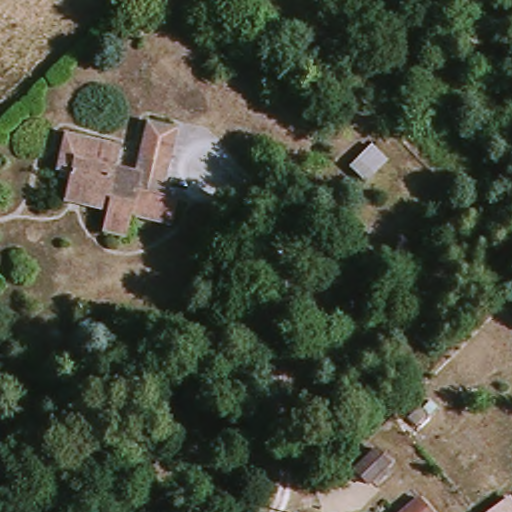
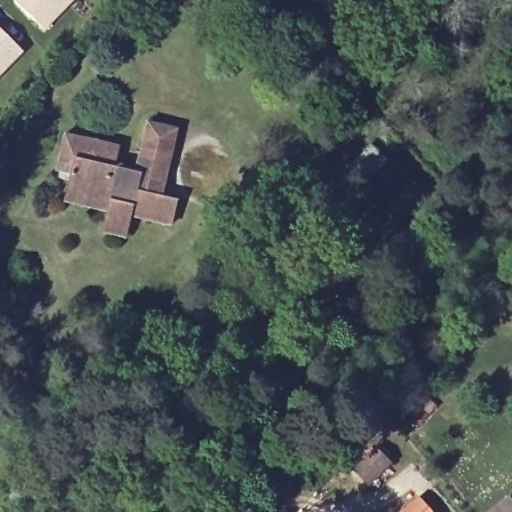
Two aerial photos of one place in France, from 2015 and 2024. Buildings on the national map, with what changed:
new [(19,0),(75,0),(44,31),(16,4),(19,0)]
new [(22,52),(0,75),(0,30),(22,52)]
unchanged [(83,179),(62,174),(66,165),(57,164),(65,126),(124,141),(117,169),(140,175),(152,121),(186,129),(168,195),(181,199),(176,224),(130,213),(125,232),(102,229),(106,208),(78,201),(83,179)]
unchanged [(362,185),(345,167),(363,147),(368,147),(384,164),(362,185)]
unchanged [(387,453),(368,470),(357,457),(377,440),(387,453)]
unchanged [(512,500),(512,512),(488,512),(510,496),(512,500)]
unchanged [(410,512),(426,498),(437,512),(410,512)]

